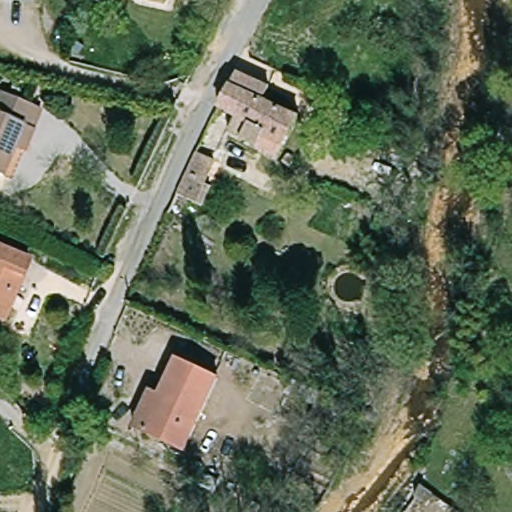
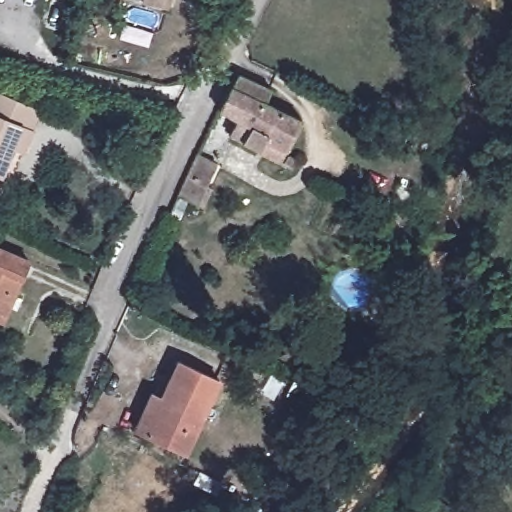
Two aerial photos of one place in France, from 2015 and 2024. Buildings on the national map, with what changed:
unchanged [(175,3),(159,0),(176,0),(175,3)]
unchanged [(232,134),(241,118),(224,109),(243,74),(275,89),(269,100),(306,119),(284,160),(232,134)]
unchanged [(15,150),(3,178),(0,177),(0,94),(43,113),(35,130),(24,154),(15,150)]
unchanged [(208,186),(214,189),(205,209),(179,197),(197,158),(198,154),(219,163),(208,186)]
unchanged [(1,317),(0,317),(0,246),(33,260),(18,295),(8,320),(1,317)]
unchanged [(181,360),(225,380),(192,451),(150,432),(167,396),(165,395),(181,360)]
unchanged [(139,427),(156,391),(165,395),(150,432),(139,427)]
unchanged [(362,410),(355,425),(335,416),(342,401),(362,410)]

